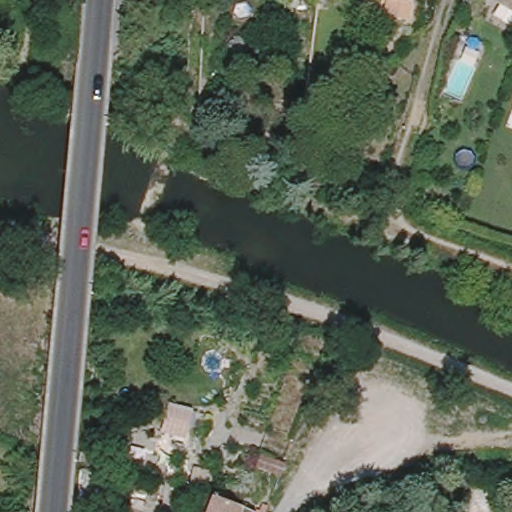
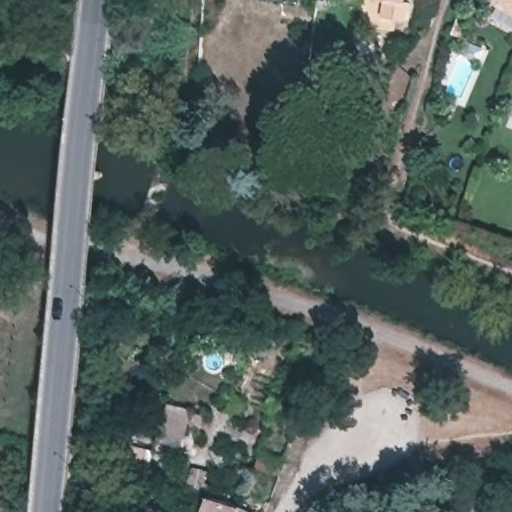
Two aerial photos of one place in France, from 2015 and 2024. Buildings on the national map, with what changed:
unchanged [(388,16),(390,0),(409,0),(409,1),(417,2),(415,20),(388,16)]
unchanged [(503,0),(512,0),(512,5),(503,0)]
unchanged [(186,440),(159,431),(164,418),(152,414),(158,392),(172,396),(170,403),(195,410),(186,440)]
unchanged [(285,464),(281,476),(256,467),(260,454),(285,464)]
unchanged [(232,507),(245,512),(194,512),(201,496),(232,507)]

